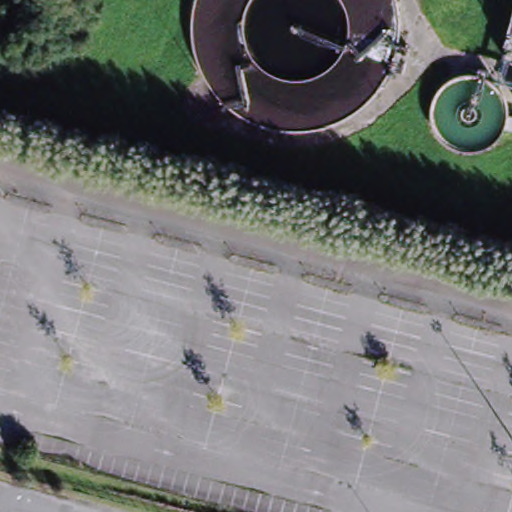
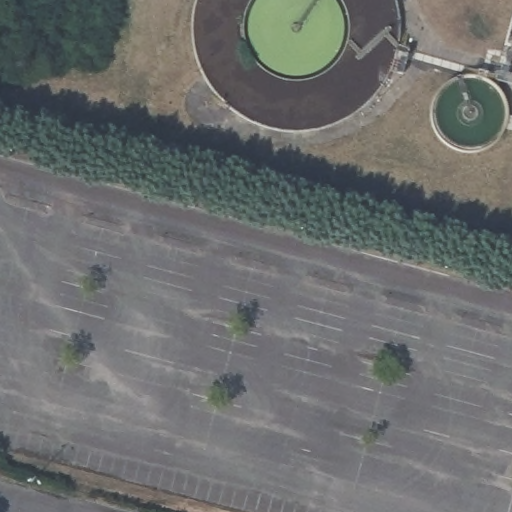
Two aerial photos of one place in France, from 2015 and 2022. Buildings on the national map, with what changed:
unchanged [(512,0),(512,50),(499,46),(512,0)]

